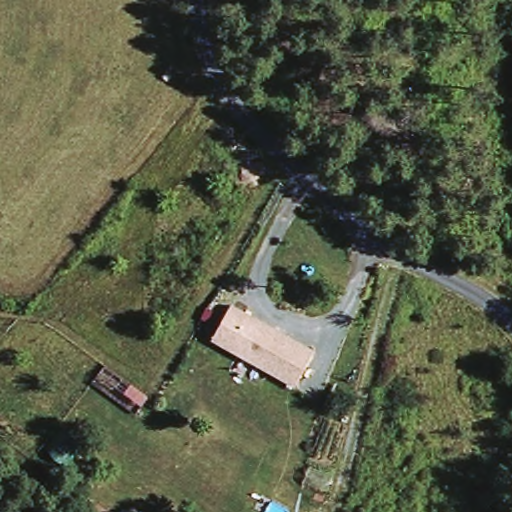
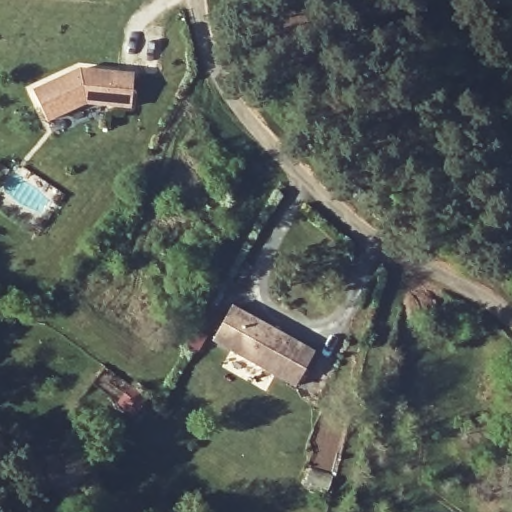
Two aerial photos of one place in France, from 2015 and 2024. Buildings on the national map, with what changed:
new [(32,88),(80,67),(135,73),(132,108),(90,103),(46,123),(32,88)]
unchanged [(296,387),(214,339),(235,300),(319,347),(296,387)]

